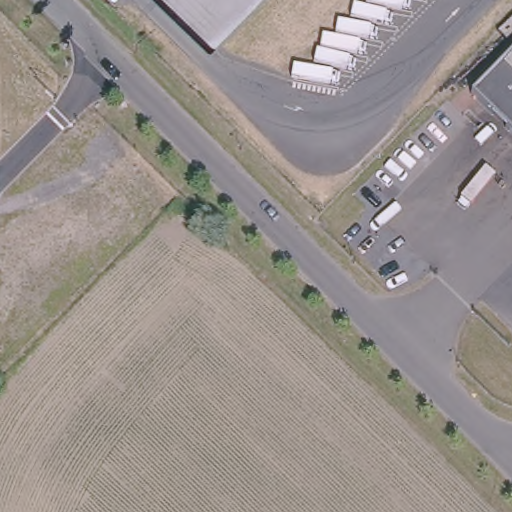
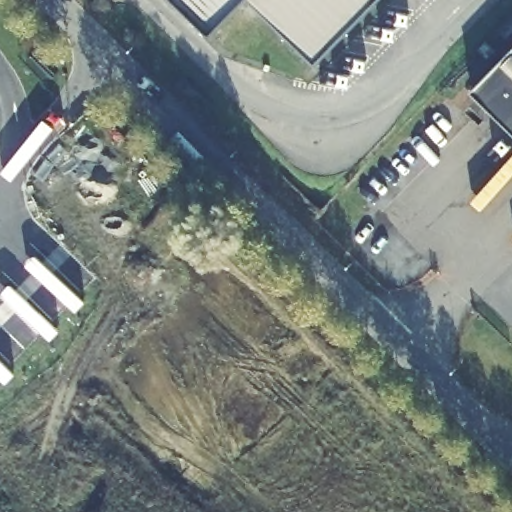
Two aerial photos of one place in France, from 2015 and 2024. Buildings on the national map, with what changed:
unchanged [(217,29),(186,0),(244,0),(217,29)]
new [(320,60),(258,0),(379,0),(320,60)]
unchanged [(512,133),(471,93),(512,51),(512,133)]

